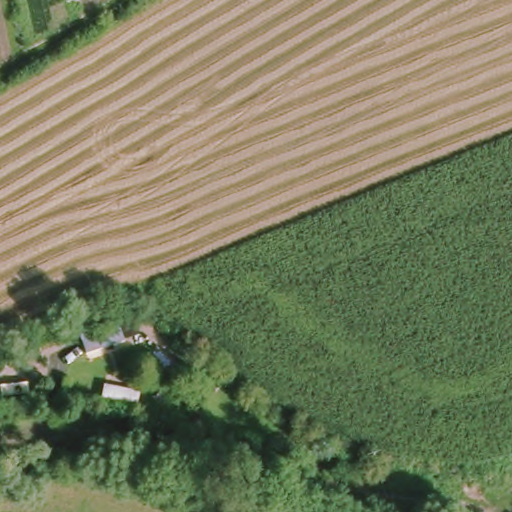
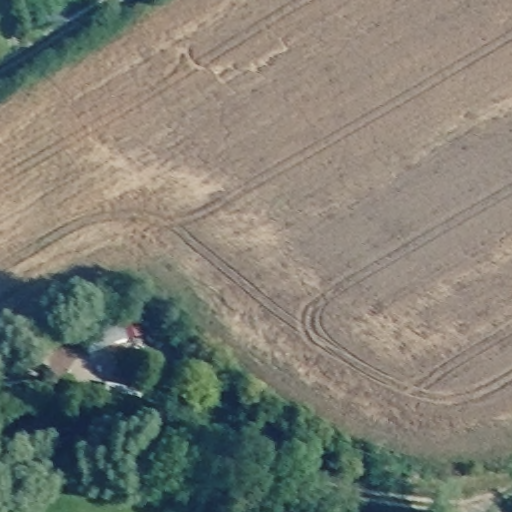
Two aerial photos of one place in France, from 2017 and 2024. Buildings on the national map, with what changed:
unchanged [(135,306),(142,325),(105,339),(97,320),(135,306)]

